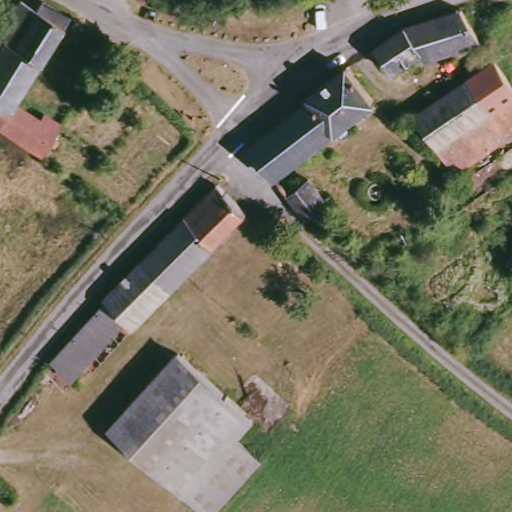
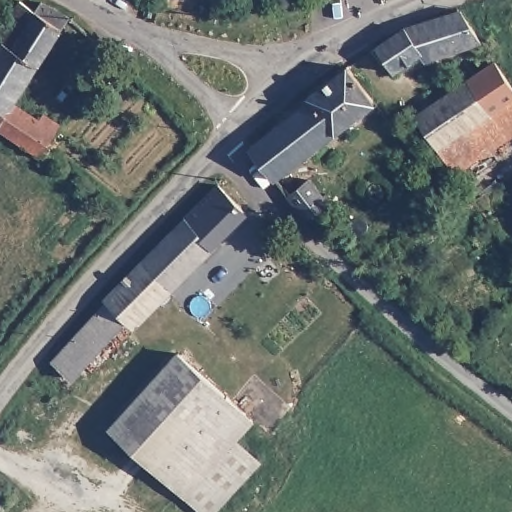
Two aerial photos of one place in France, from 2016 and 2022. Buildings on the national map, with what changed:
unchanged [(0,129),(0,42),(3,36),(0,33),(0,29),(17,0),(19,0),(60,24),(17,95),(37,107),(40,103),(61,115),(37,153),(0,129)]
unchanged [(475,36),(415,57),(410,48),(382,63),(366,41),(400,20),(456,5),(475,36)]
unchanged [(512,83),(512,137),(455,175),(415,116),(497,60),(512,83)]
unchanged [(345,62),(370,97),(265,169),(245,143),(305,99),(301,94),(345,62)]
unchanged [(309,175),(327,200),(306,214),(304,212),(287,191),(309,175)]
unchanged [(139,321),(130,313),(67,380),(47,361),(112,293),(109,289),(222,176),(251,204),(139,321)]
unchanged [(206,510),(105,420),(176,343),(251,411),(235,429),(258,451),(206,510)]

